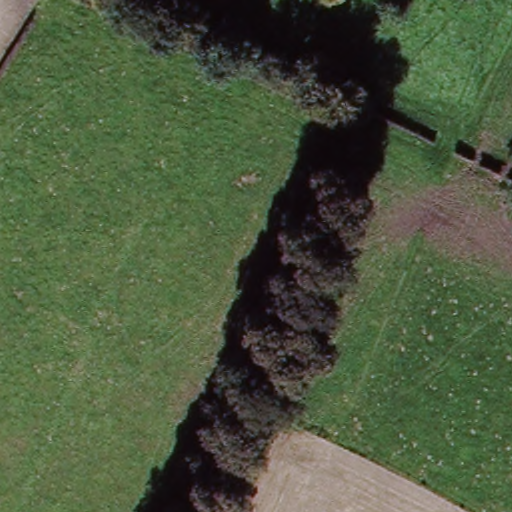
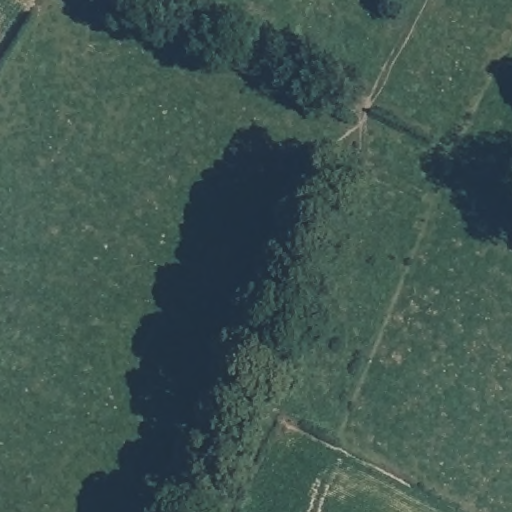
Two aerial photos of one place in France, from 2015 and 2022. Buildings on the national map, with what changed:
[]

